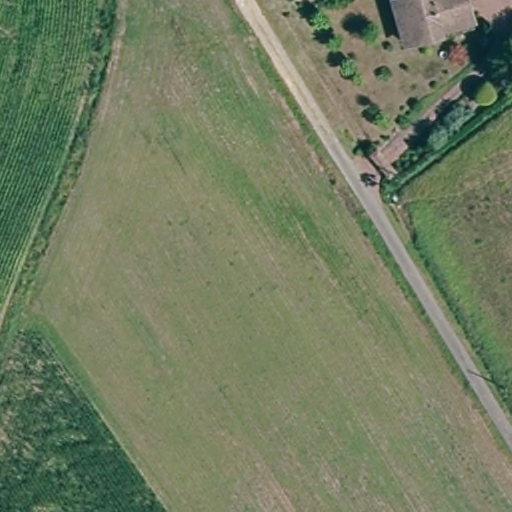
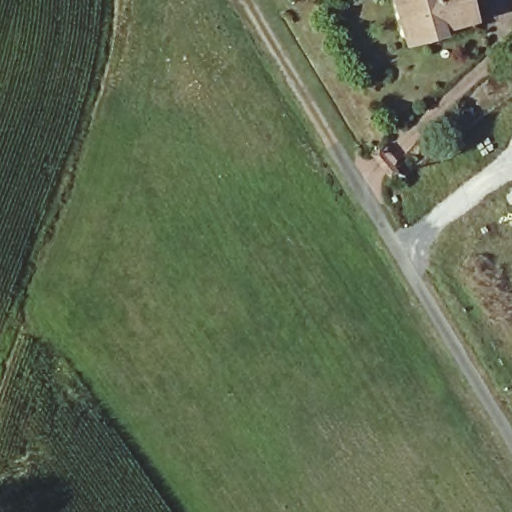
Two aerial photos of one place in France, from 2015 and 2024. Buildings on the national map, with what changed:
unchanged [(473,23),(404,42),(393,0),(467,0),(473,23)]

